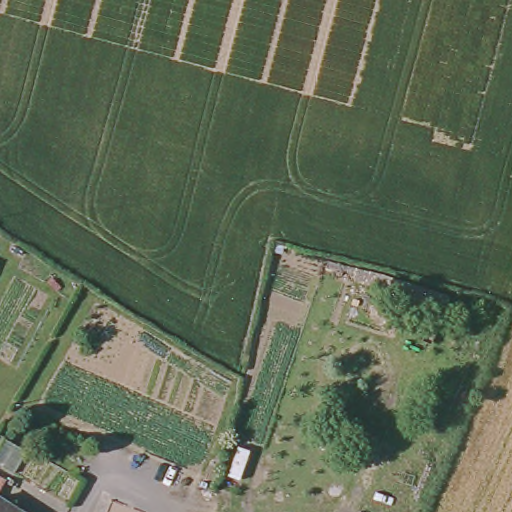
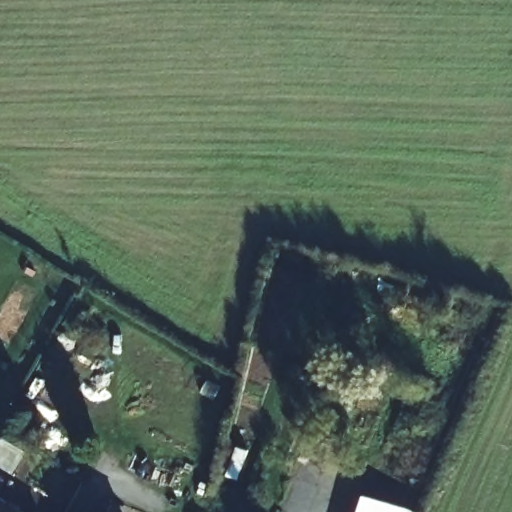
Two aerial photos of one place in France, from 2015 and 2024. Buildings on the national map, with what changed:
unchanged [(4,463),(0,461),(0,427),(20,441),(4,463)]
unchanged [(0,486),(0,480),(2,482),(0,486)]
new [(364,496),(413,512),(358,512),(364,496)]
unchanged [(0,503),(16,512),(0,512),(0,503)]

